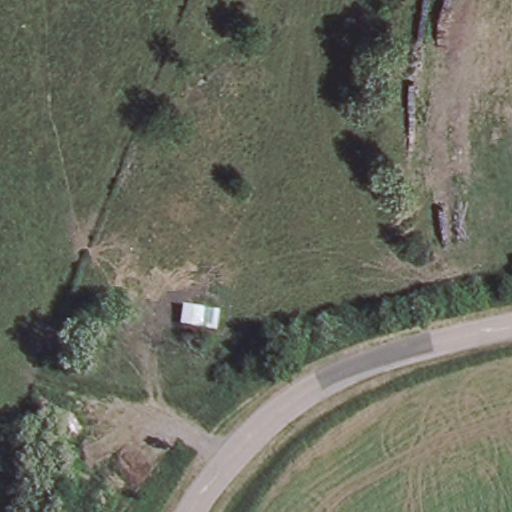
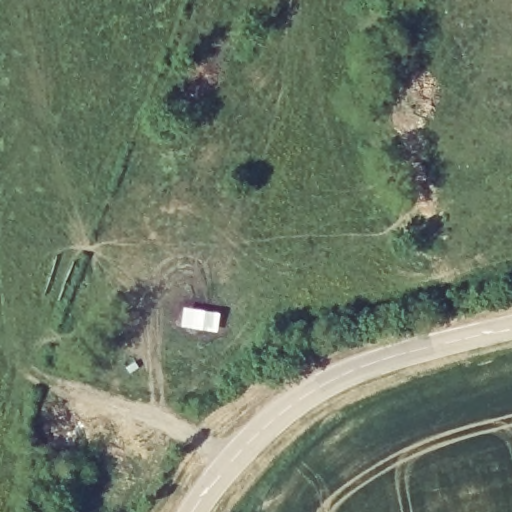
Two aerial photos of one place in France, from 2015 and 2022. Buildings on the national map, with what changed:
[]

